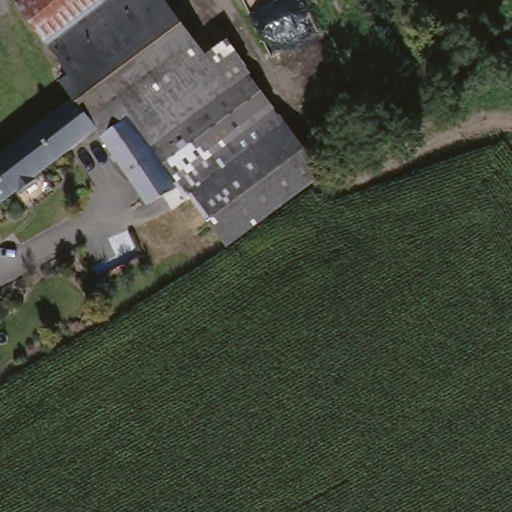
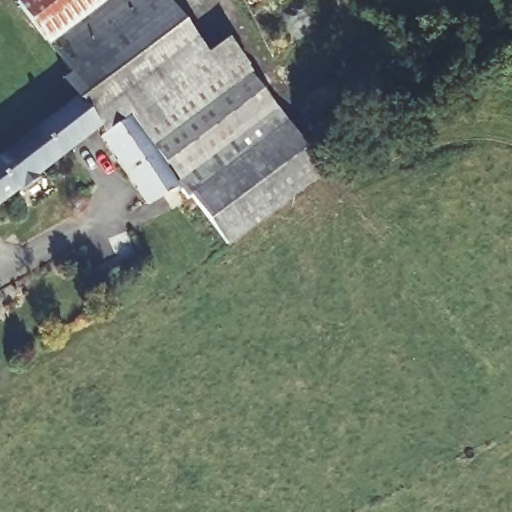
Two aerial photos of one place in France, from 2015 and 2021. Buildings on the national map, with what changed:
unchanged [(227,251),(179,192),(171,182),(130,122),(125,115),(99,133),(91,122),(76,105),(63,87),(71,80),(17,7),(26,0),(106,0),(107,1),(109,0),(160,0),(170,14),(203,55),(221,44),(323,179),(227,251)]
unchanged [(37,184),(21,197),(19,195),(0,209),(0,162),(76,105),(91,122),(99,133),(36,182),(37,184)]
unchanged [(130,122),(171,182),(179,192),(164,201),(149,210),(101,142),(103,141),(130,122)]

